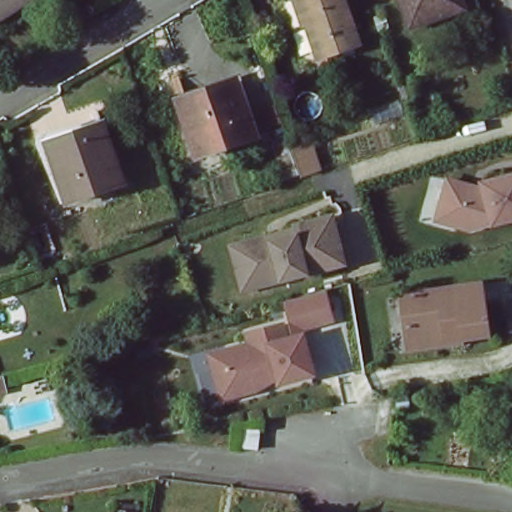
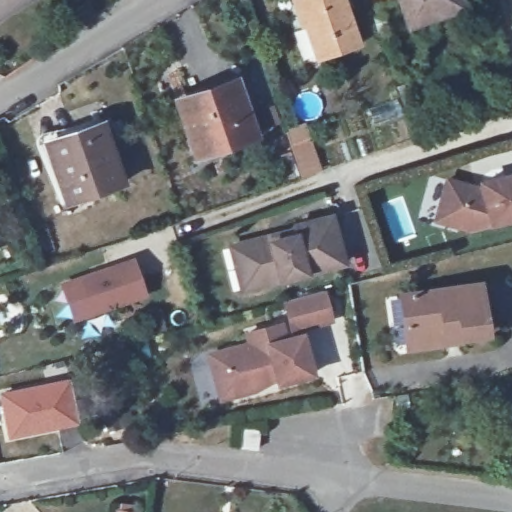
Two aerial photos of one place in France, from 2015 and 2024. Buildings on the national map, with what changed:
unchanged [(0,0),(25,0),(0,16),(0,0)]
unchanged [(315,59),(304,26),(300,27),(291,0),(342,0),(356,45),(315,59)]
unchanged [(389,0),(450,0),(457,20),(402,39),(389,0)]
unchanged [(458,25),(457,20),(450,0),(464,0),(472,20),(458,25)]
unchanged [(235,82),(253,137),(195,158),(176,101),(185,98),(235,82)]
unchanged [(58,205),(34,143),(37,137),(100,119),(102,125),(45,144),(65,203),(58,205)]
unchanged [(45,144),(102,125),(122,183),(65,203),(45,144)]
unchanged [(290,153),(303,147),(312,175),(299,180),(290,153)]
unchanged [(455,231),(458,222),(436,215),(445,186),(472,194),(473,198),(480,198),(477,190),(512,182),(512,224),(468,235),(455,231)]
unchanged [(235,244),(247,240),(247,241),(272,234),(297,228),(296,224),(334,216),(345,262),(257,283),(246,286),(235,244)]
new [(130,263),(132,269),(147,263),(158,292),(72,323),(59,288),(130,263)]
unchanged [(402,326),(397,297),(477,285),(485,335),(427,344),(407,347),(402,326)]
unchanged [(207,353),(247,341),(243,329),(287,317),(283,299),(326,288),(334,320),(303,329),(314,374),(278,385),(220,401),(207,353)]
new [(80,426),(10,442),(0,396),(0,393),(72,379),(80,426)]
demolished [(9,396),(0,397),(0,380),(7,380),(9,396)]
unchanged [(135,409),(138,427),(103,431),(98,418),(135,409)]
unchanged [(257,432),(255,450),(238,448),(240,430),(257,432)]

